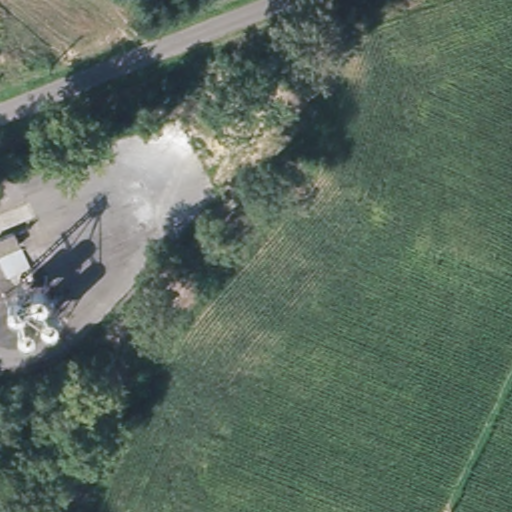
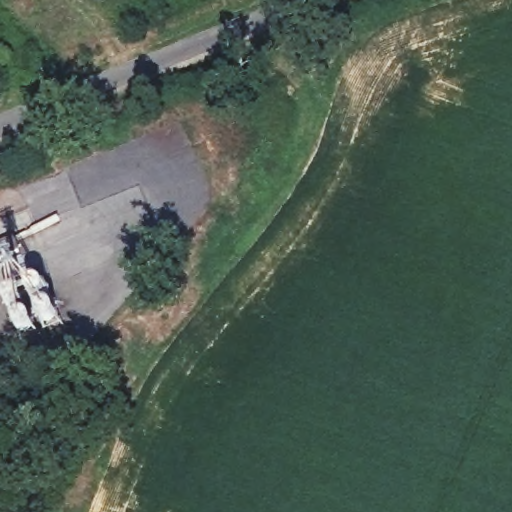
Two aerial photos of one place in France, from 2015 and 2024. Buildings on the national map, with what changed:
unchanged [(19,341),(4,305),(13,300),(0,271),(0,245),(15,240),(37,287),(47,283),(64,325),(19,341)]

